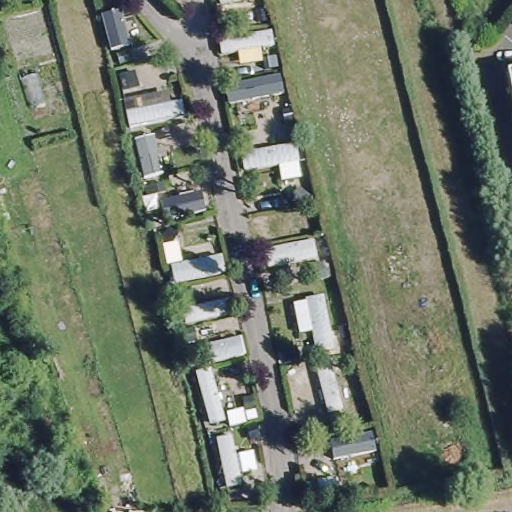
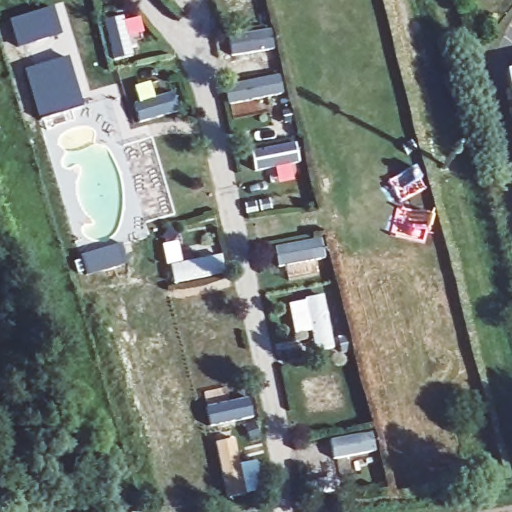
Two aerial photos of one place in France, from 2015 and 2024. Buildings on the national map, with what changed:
new [(61,35),(17,50),(9,21),(51,9),(61,35)]
new [(82,107),(39,121),(22,72),(68,58),(82,107)]
unchanged [(512,72),(512,90),(509,72),(512,72)]

